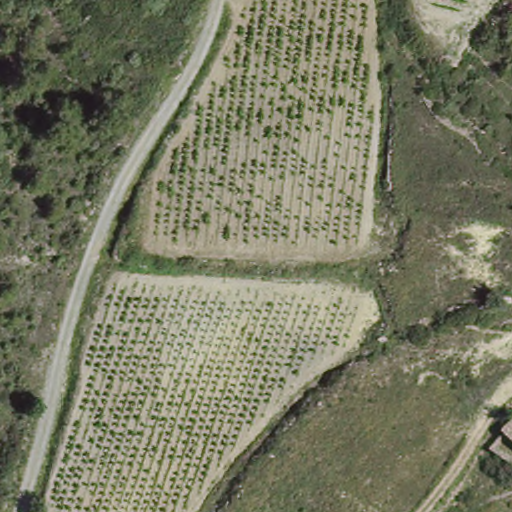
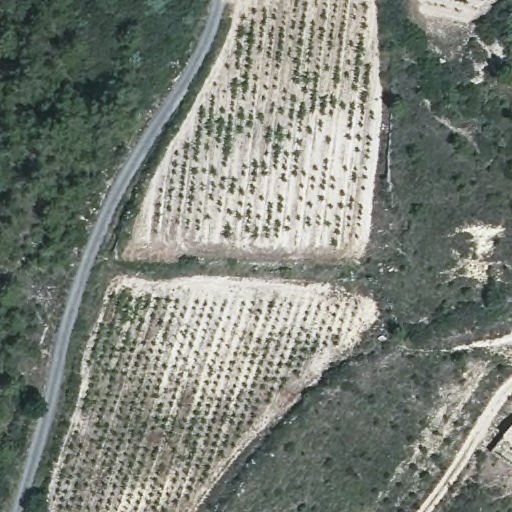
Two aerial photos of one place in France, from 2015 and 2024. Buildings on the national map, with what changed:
unchanged [(512,415),(512,444),(498,433),(512,415)]

